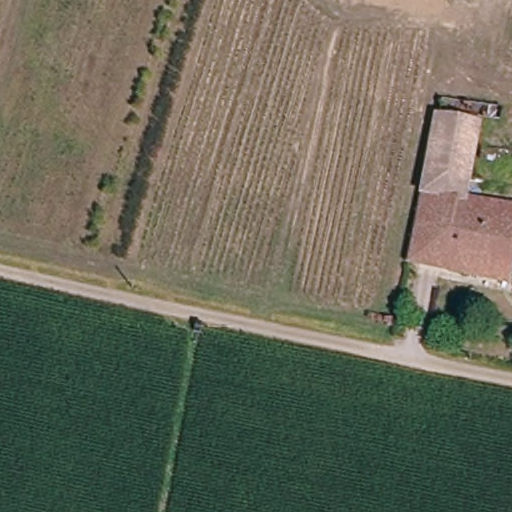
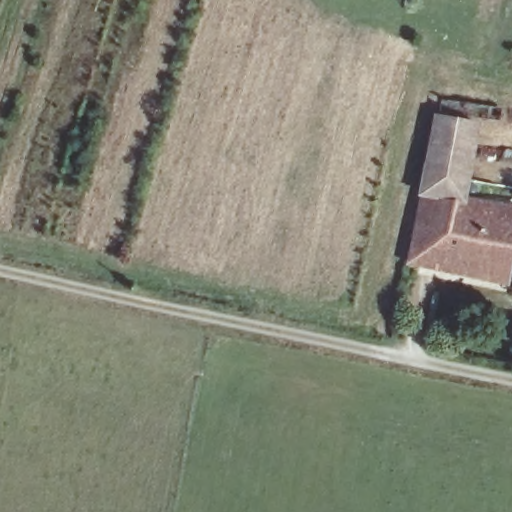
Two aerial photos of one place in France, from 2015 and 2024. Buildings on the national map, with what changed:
unchanged [(430,121),(475,131),(465,184),(461,203),(460,207),(416,200),(430,121)]
unchanged [(460,207),(461,203),(512,212),(512,233),(503,287),(402,268),(416,200),(460,207)]

